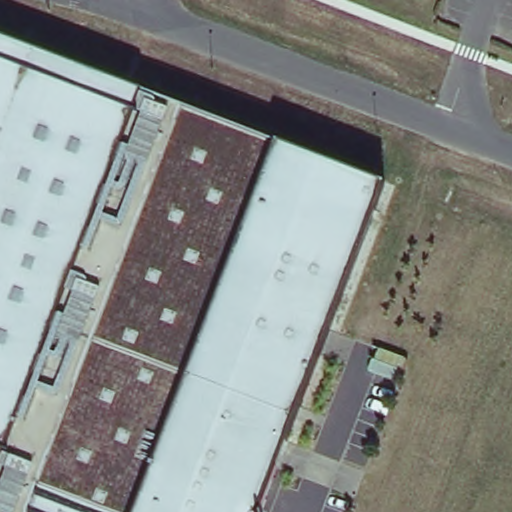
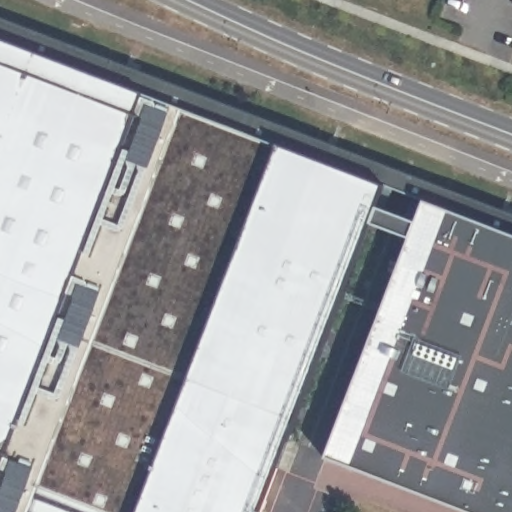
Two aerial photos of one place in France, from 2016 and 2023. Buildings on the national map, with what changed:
unchanged [(255,512),(0,512),(0,42),(378,186),(255,512)]
new [(512,512),(507,512),(346,452),(443,196),(512,221),(512,512)]

